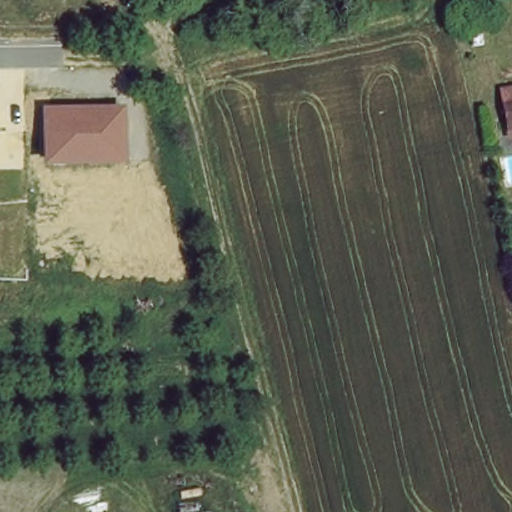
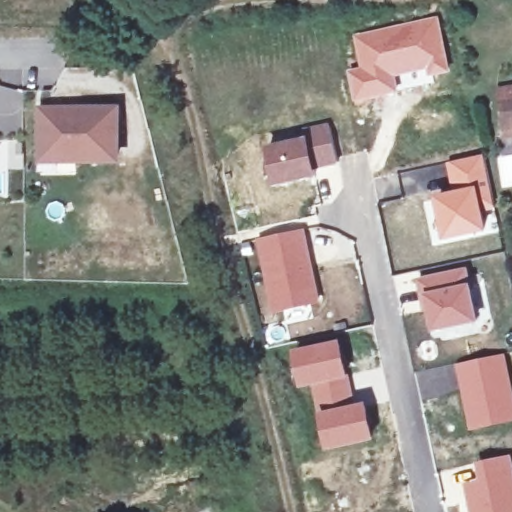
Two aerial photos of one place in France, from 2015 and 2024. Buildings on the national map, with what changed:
new [(359,67),(352,34),(438,16),(452,72),(428,78),(427,73),(399,78),(400,90),(354,102),(347,70),(359,67)]
unchanged [(512,99),(512,124),(505,125),(500,102),(512,99)]
unchanged [(123,107),(122,164),(41,164),(40,106),(123,107)]
new [(275,187),(265,147),(310,135),(308,127),(329,122),(339,165),(316,170),(318,177),(275,187)]
new [(452,191),(446,162),(484,154),(497,210),(485,213),(489,232),(445,241),(435,196),(452,191)]
new [(305,227),(321,303),(272,314),(258,253),(243,257),(239,243),(305,227)]
new [(468,266),(479,326),(431,335),(415,276),(468,266)]
new [(341,339),(355,404),(367,402),(375,441),(327,451),(311,387),(302,389),(293,351),(341,339)]
new [(505,353),(512,385),(512,422),(469,431),(454,364),(505,353)]
new [(477,462),(510,455),(512,461),(512,512),(468,512),(462,482),(479,478),(477,462)]

